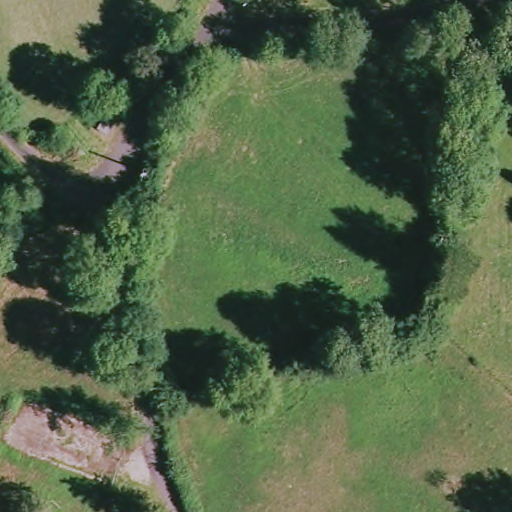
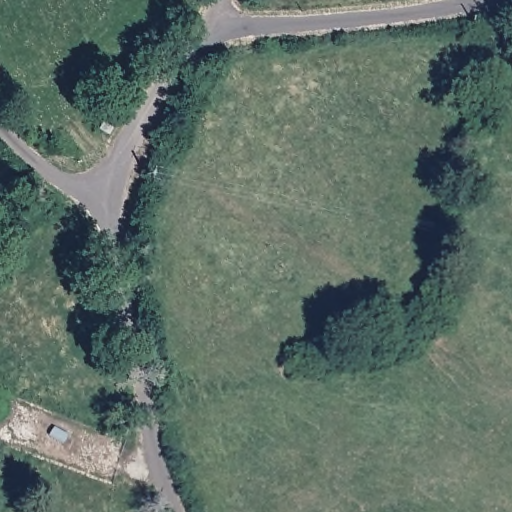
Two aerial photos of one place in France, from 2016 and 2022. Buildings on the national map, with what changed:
unchanged [(90,177),(82,175),(84,165),(93,168),(90,177)]

